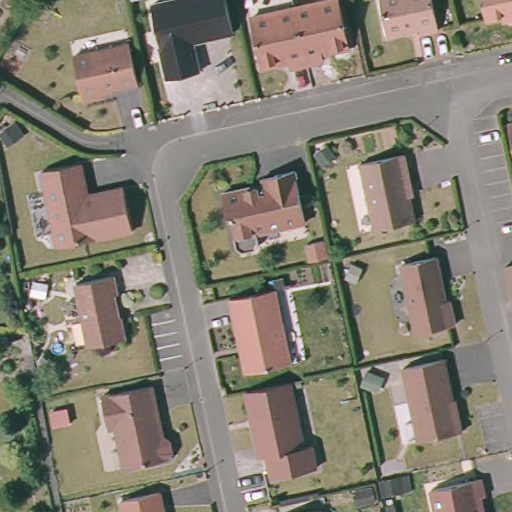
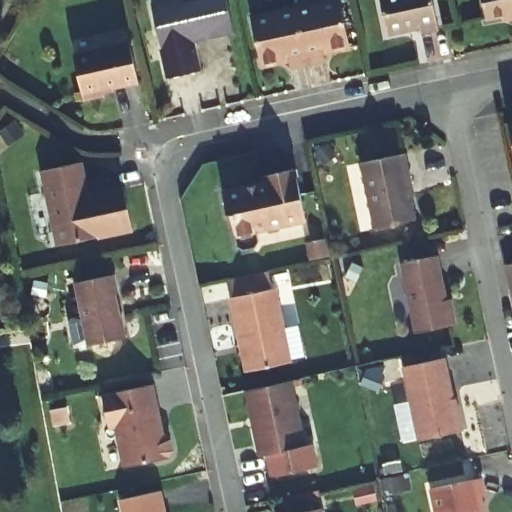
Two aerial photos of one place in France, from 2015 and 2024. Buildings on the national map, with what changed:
unchanged [(234,33),(193,42),(200,72),(169,79),(151,6),(177,0),(226,0),(234,33)]
unchanged [(333,0),(340,0),(350,47),(322,53),(324,58),(312,61),(307,62),(304,48),(296,8),(333,0)]
unchanged [(445,32),(427,36),(426,30),(391,36),(385,0),(437,0),(445,32)]
unchanged [(489,18),(485,0),(512,0),(512,14),(489,18)]
unchanged [(252,18),(296,8),(304,48),(307,62),(290,66),(289,61),(262,67),(260,59),(252,18)]
unchanged [(125,49),(133,88),(97,96),(98,101),(78,105),(69,61),(125,49)]
unchanged [(400,154),(403,171),(400,172),(411,221),(371,229),(357,163),(400,154)]
unchanged [(69,163),(76,196),(114,187),(123,231),(48,247),(32,171),(69,163)]
unchanged [(302,222),(252,232),(255,242),(251,248),(239,251),(232,247),(226,215),(222,216),(218,194),(260,184),(258,177),(271,174),(291,170),(302,222)]
unchanged [(431,257),(441,301),(445,300),(450,325),(412,333),(397,264),(431,257)]
unchanged [(512,268),(512,299),(510,299),(504,269),(512,268)]
unchanged [(104,276),(107,294),(104,295),(109,317),(111,317),(116,339),(80,346),(67,284),(104,276)]
unchanged [(271,289),(286,363),(242,372),(226,298),(271,289)]
unchanged [(510,299),(512,299),(512,310),(510,299)]
unchanged [(445,411),(447,410),(452,432),(410,441),(394,368),(434,359),(445,411)]
unchanged [(280,382),(294,447),(301,445),(307,468),(264,478),(259,455),(252,457),(237,391),(280,382)]
unchanged [(158,436),(160,435),(160,437),(166,441),(168,451),(165,457),(165,459),(120,468),(111,427),(104,429),(97,396),(147,385),(158,436)]
unchanged [(476,496),(467,498),(470,512),(426,512),(421,490),(472,479),(476,496)]
unchanged [(160,512),(119,512),(116,501),(155,492),(160,512)]
unchanged [(302,512),(311,510),(311,512),(302,512)]

